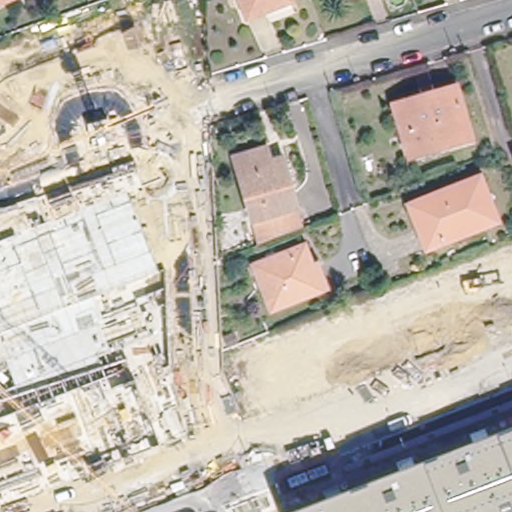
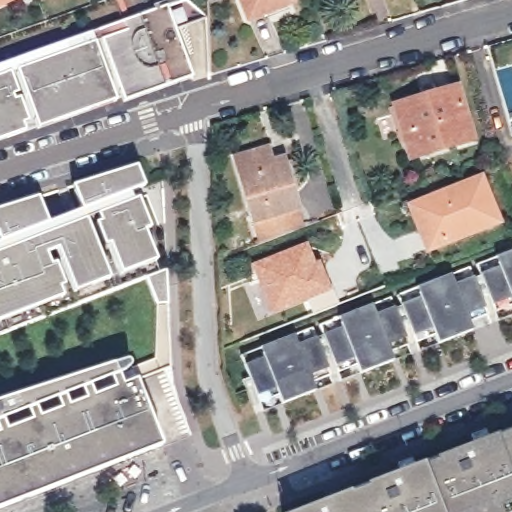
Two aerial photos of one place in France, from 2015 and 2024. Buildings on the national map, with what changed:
unchanged [(0,3),(0,0),(8,0),(0,3)]
new [(0,140),(0,64),(167,5),(182,0),(188,0),(206,15),(175,29),(190,75),(116,100),(0,140)]
unchanged [(252,16),(246,0),(291,0),(252,16)]
unchanged [(475,136),(415,153),(401,109),(399,102),(437,90),(459,83),(475,136)]
unchanged [(236,153),(266,145),(270,159),(280,157),(288,188),(293,186),(303,223),(261,238),(236,153)]
new [(46,221),(81,207),(71,184),(135,165),(144,184),(127,190),(131,200),(138,197),(149,225),(141,227),(155,259),(120,272),(109,244),(102,247),(94,223),(101,221),(97,213),(85,218),(108,278),(74,290),(58,246),(43,253),(49,265),(55,264),(63,284),(58,286),(61,298),(0,320),(0,208),(37,196),(46,221)]
demolished [(5,287),(0,273),(0,203),(94,173),(122,257),(5,287)]
unchanged [(500,220),(429,249),(412,207),(483,178),(500,220)]
new [(494,299),(477,254),(512,241),(512,303),(498,308),(494,299)]
unchanged [(311,270),(323,266),(330,289),(274,310),(259,268),(304,251),(311,270)]
new [(471,319),(475,327),(458,334),(434,271),(470,257),(486,302),(490,311),(471,319)]
new [(415,329),(398,285),(434,271),(458,334),(441,340),(438,332),(419,339),(415,329)]
new [(392,349),(395,358),(379,364),(355,302),(390,288),(407,332),(411,342),(392,349)]
new [(336,360),(319,316),(355,302),(379,364),(362,371),(359,362),(340,370),(336,360)]
new [(315,379),(318,388),(301,394),(277,332),(313,318),(330,362),(334,372),(315,379)]
new [(258,390),(241,346),(277,332),(301,394),(285,401),(281,392),(262,400),(258,390)]
unchanged [(128,359),(130,360),(135,378),(160,444),(0,506),(0,400),(126,359),(128,359)]
unchanged [(292,512),(420,463),(512,428),(512,512),(292,512)]

